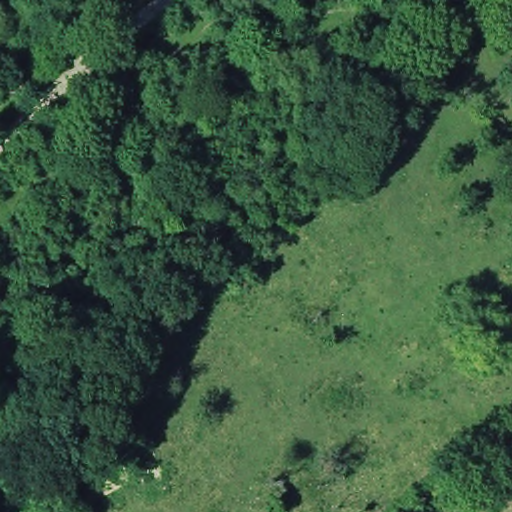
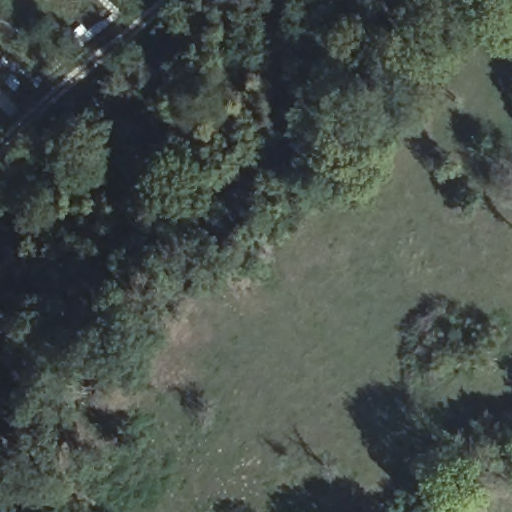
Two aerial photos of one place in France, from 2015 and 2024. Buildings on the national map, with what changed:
[]

